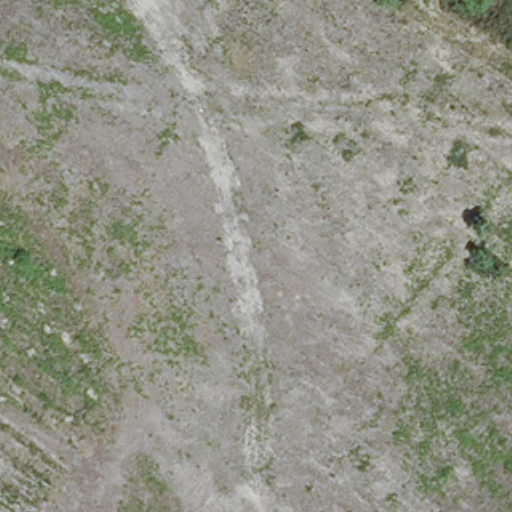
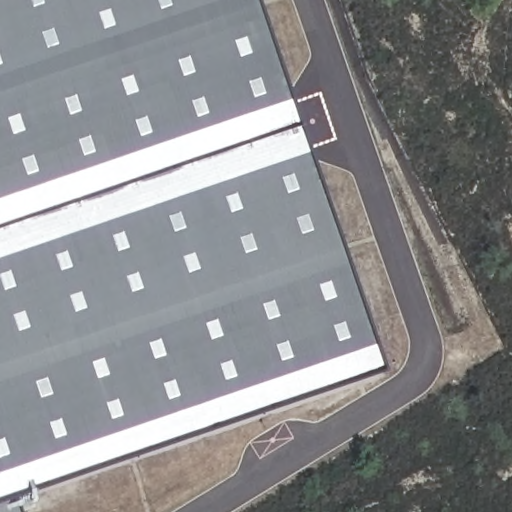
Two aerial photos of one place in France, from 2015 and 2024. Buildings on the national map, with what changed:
new [(19,512),(0,512),(0,0),(259,0),(386,374),(16,506),(19,512)]

